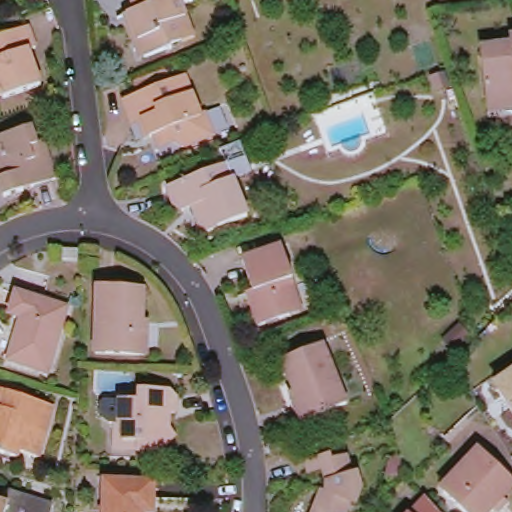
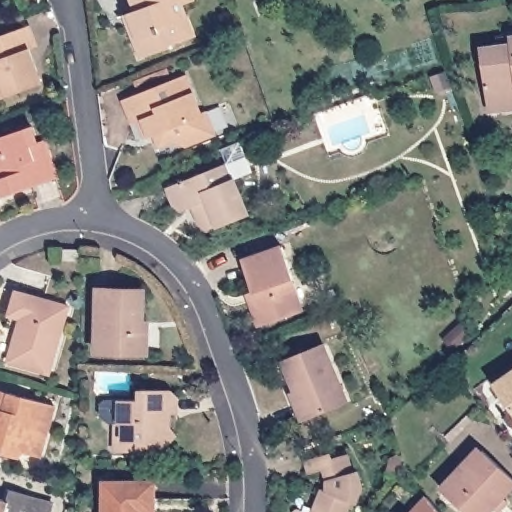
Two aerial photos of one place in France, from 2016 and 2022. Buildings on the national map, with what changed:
unchanged [(187,17),(175,21),(182,40),(174,43),(172,47),(146,57),(140,41),(137,42),(130,25),(134,24),(130,13),(137,10),(133,0),(193,0),(194,1),(182,5),(187,17)]
unchanged [(36,49),(29,52),(40,86),(4,99),(2,96),(0,97),(0,38),(27,27),(36,49)]
unchanged [(490,113),(489,101),(482,48),(512,45),(511,37),(512,37),(512,110),(490,113)]
unchanged [(209,116),(219,139),(189,152),(177,146),(169,149),(162,147),(160,140),(156,141),(150,125),(140,128),(129,105),(190,80),(205,118),(209,116)]
unchanged [(45,143),(57,179),(34,187),(32,185),(25,188),(25,191),(6,197),(0,181),(0,140),(32,128),(38,144),(45,143)]
unchanged [(209,236),(202,230),(194,211),(183,215),(175,208),(170,192),(227,169),(222,154),(240,147),(252,178),(234,185),(247,221),(209,236)]
unchanged [(292,279),(298,298),(293,300),(291,310),(293,315),(263,327),(252,301),(257,298),(244,261),(282,247),(293,279),(292,279)]
unchanged [(79,261),(64,260),(64,250),(79,250),(79,261)]
unchanged [(142,321),(147,322),(146,354),(96,352),(99,288),(144,289),(142,321)]
unchanged [(9,362),(21,319),(10,315),(17,294),(67,308),(48,375),(9,362)]
unchanged [(322,344),(347,403),(308,420),(283,361),(322,344)]
unchanged [(497,389),(512,380),(512,409),(497,389)]
unchanged [(20,451),(19,458),(0,453),(0,391),(55,407),(40,458),(20,451)]
unchanged [(122,425),(125,425),(126,400),(146,401),(147,391),(175,391),(182,396),(182,412),(167,413),(167,419),(175,430),(175,443),(166,443),(166,453),(145,453),(121,453),(122,425)]
unchanged [(512,479),(512,487),(502,497),(509,503),(500,512),(496,512),(492,509),(494,507),(492,504),(484,512),(465,512),(445,492),(482,452),(512,479)]
unchanged [(352,473),(357,472),(362,487),(355,504),(350,502),(346,512),(314,512),(315,510),(319,508),(317,502),(322,491),(326,492),(328,487),(323,469),(308,473),(305,462),(330,454),(332,458),(347,455),(352,473)]
unchanged [(155,501),(145,501),(145,512),(105,512),(105,482),(155,482),(155,501)]
unchanged [(0,500),(9,502),(10,492),(50,504),(48,512),(0,512),(0,500)]
unchanged [(427,496),(440,512),(412,512),(427,496)]

